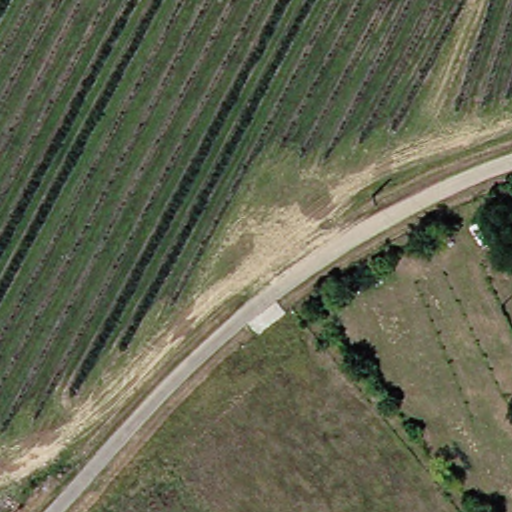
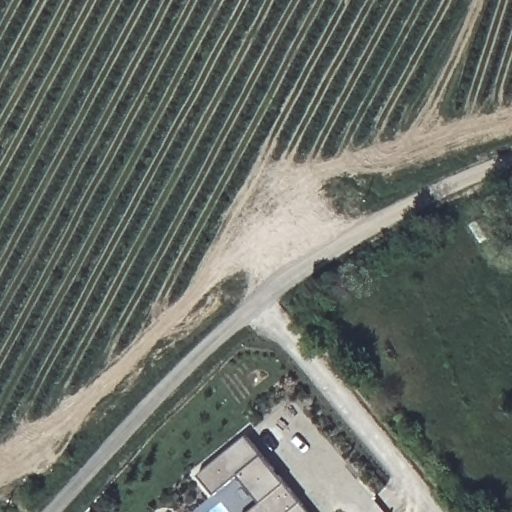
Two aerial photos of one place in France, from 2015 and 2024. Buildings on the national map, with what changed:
new [(309,512),(246,512),(259,501),(237,474),(213,494),(197,473),(246,434),(309,512)]

